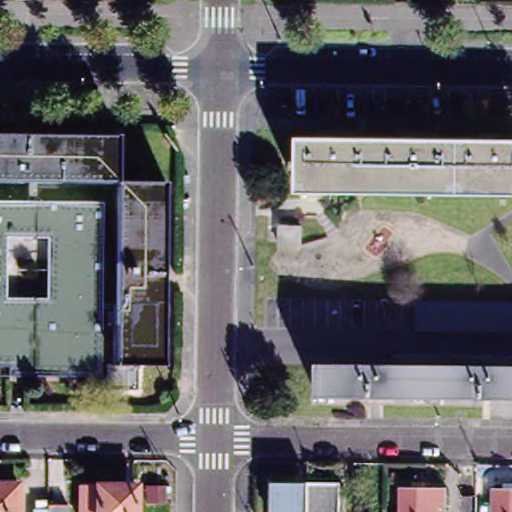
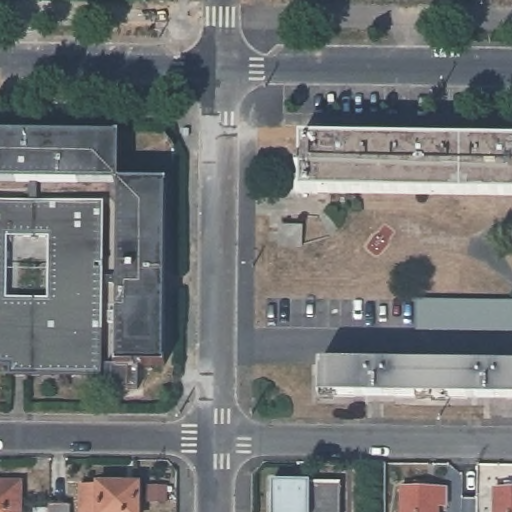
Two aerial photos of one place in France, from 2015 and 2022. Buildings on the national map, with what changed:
unchanged [(121,133),(120,182),(0,181),(0,133),(121,133)]
unchanged [(512,197),(300,195),(300,138),(512,141),(512,197)]
unchanged [(110,311),(118,311),(120,182),(169,183),(165,365),(117,364),(117,323),(110,323),(110,311)]
unchanged [(105,202),(101,377),(11,376),(11,366),(0,366),(0,201),(105,202)]
unchanged [(302,229),(302,249),(281,248),(280,229),(302,229)]
unchanged [(512,333),(415,332),(415,301),(512,302),(512,333)]
unchanged [(320,363),(512,365),(512,399),(320,397),(320,363)]
unchanged [(272,482),(280,482),(340,482),(340,512),(272,512),(272,489),(272,482)]
unchanged [(416,489),(416,483),(425,483),(425,489),(436,489),(446,489),(446,508),(436,508),(436,512),(401,512),(401,489),(416,489)]
unchanged [(505,490),(505,484),(512,484),(512,512),(494,512),(495,490),(505,490)]
unchanged [(19,512),(0,512),(0,485),(20,485),(19,512)]
unchanged [(80,512),(80,486),(98,486),(138,486),(138,512),(80,512)]
unchanged [(166,488),(166,505),(146,504),(146,488),(166,488)]
unchanged [(68,507),(68,512),(48,512),(48,507),(68,507)]

